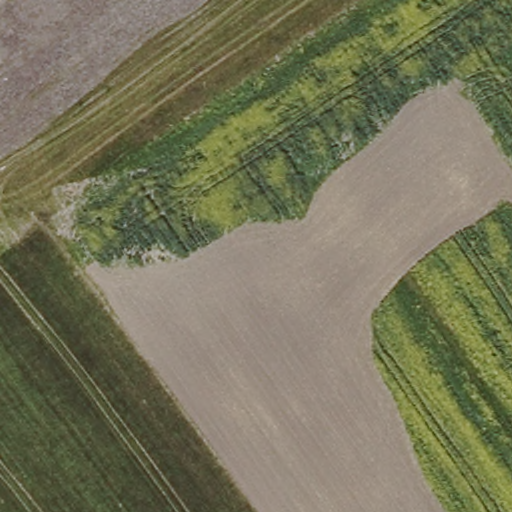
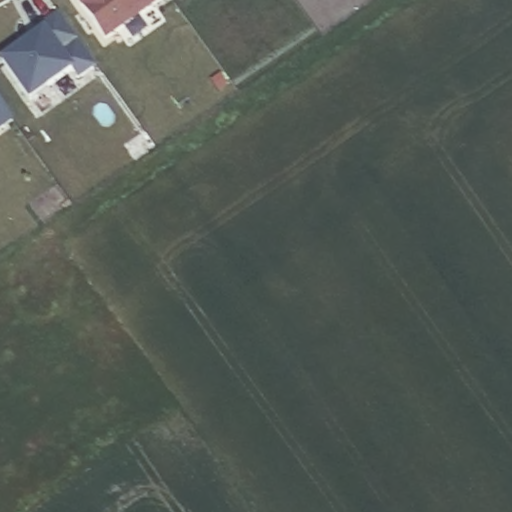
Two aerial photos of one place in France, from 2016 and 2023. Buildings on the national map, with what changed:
new [(105,39),(77,0),(160,0),(105,39)]
new [(40,24),(57,12),(96,66),(79,78),(72,69),(28,101),(0,62),(0,61),(42,27),(40,24)]
new [(0,130),(0,102),(14,120),(0,130)]

